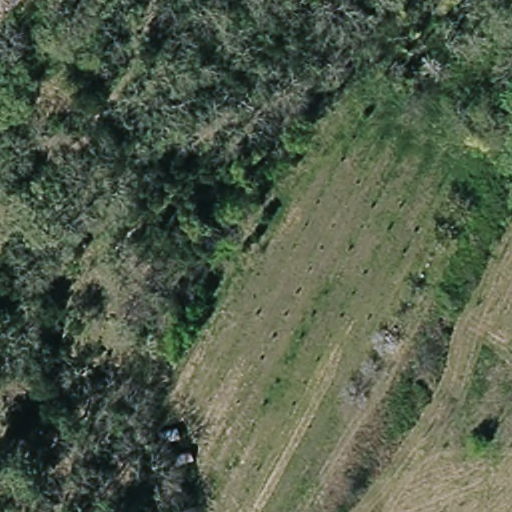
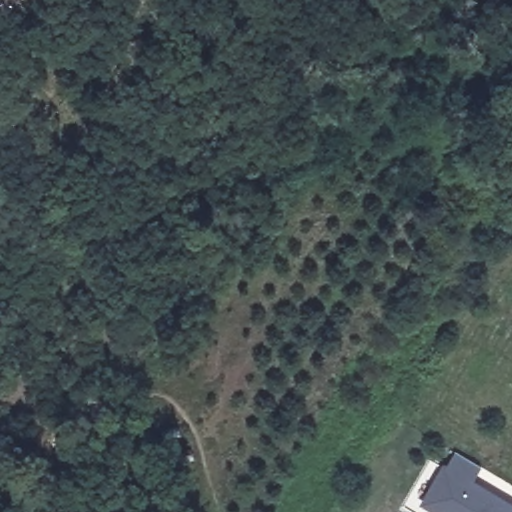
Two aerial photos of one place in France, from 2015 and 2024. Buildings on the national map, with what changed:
unchanged [(7,12),(0,5),(0,0),(18,0),(7,12)]
new [(473,480),(512,504),(512,512),(430,512),(419,505),(443,465),(446,466),(455,452),(481,468),(473,480)]

